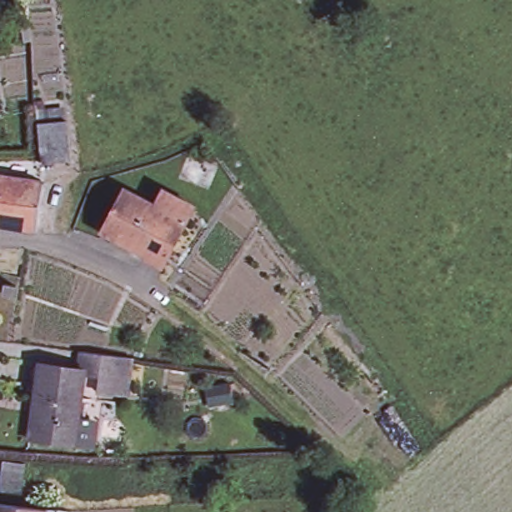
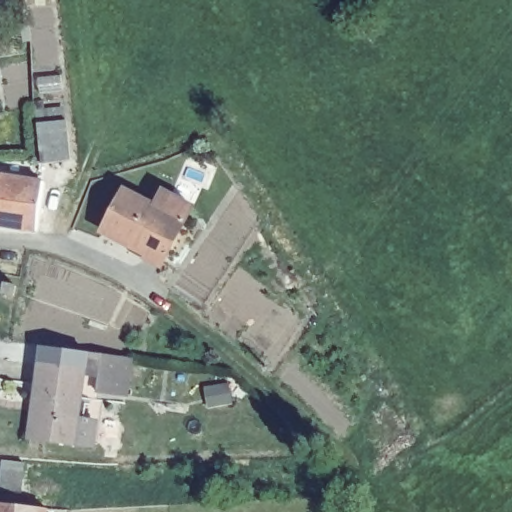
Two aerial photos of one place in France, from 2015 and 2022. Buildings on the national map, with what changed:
unchanged [(55,106),(68,106),(70,119),(73,162),(41,165),(37,107),(55,106)]
unchanged [(0,219),(0,171),(42,177),(48,177),(45,214),(38,212),(37,225),(35,224),(0,219)]
unchanged [(143,252),(100,228),(122,188),(152,205),(162,189),(184,202),(192,206),(183,222),(164,256),(160,262),(147,255),(143,252)]
unchanged [(75,436),(75,440),(36,435),(30,435),(35,396),(38,372),(40,358),(79,364),(81,347),(108,351),(132,355),(128,390),(97,386),(97,382),(98,372),(85,370),(83,380),(78,415),(95,418),(92,438),(75,436)]
unchanged [(9,460),(32,461),(28,492),(7,490),(9,460)]
unchanged [(0,495),(49,501),(47,512),(0,512),(0,495)]

